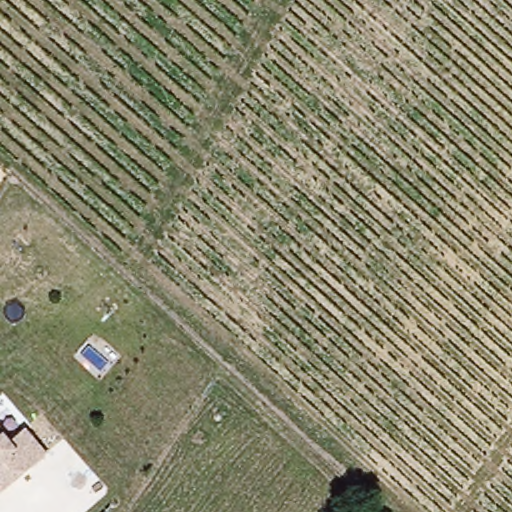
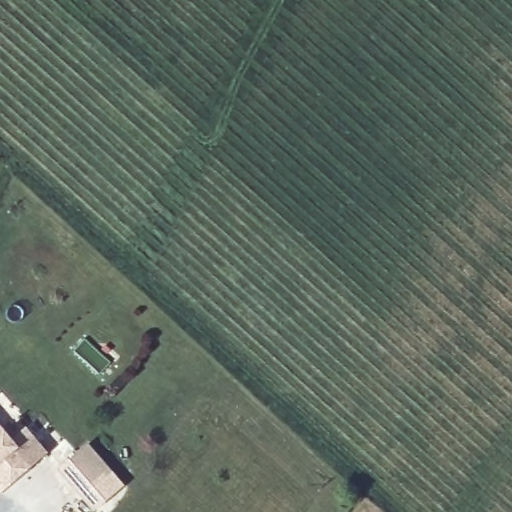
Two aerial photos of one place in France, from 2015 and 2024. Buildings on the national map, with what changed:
unchanged [(28,423),(49,447),(0,489),(0,419),(14,435),(28,423)]
new [(87,491),(62,462),(90,438),(119,471),(110,480),(94,498),(87,491)]

